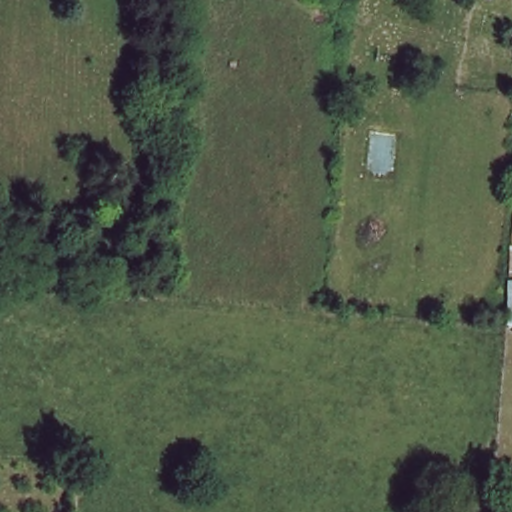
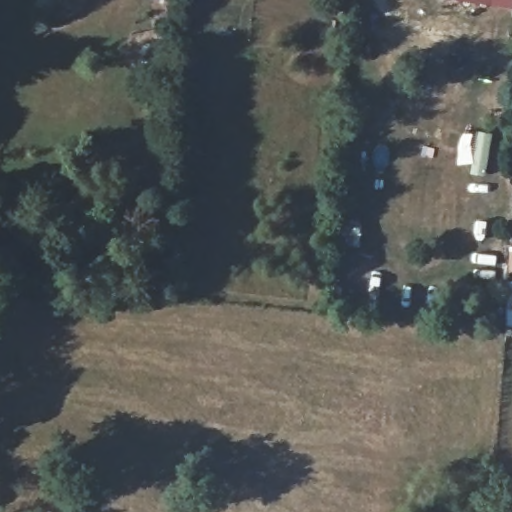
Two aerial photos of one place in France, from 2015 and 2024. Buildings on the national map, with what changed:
new [(456,0),(512,0),(512,6),(456,0)]

